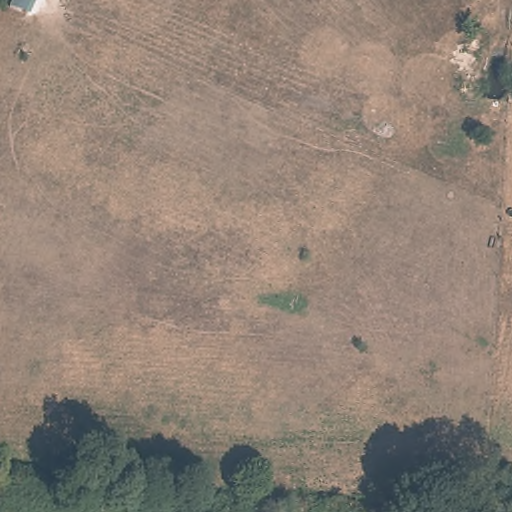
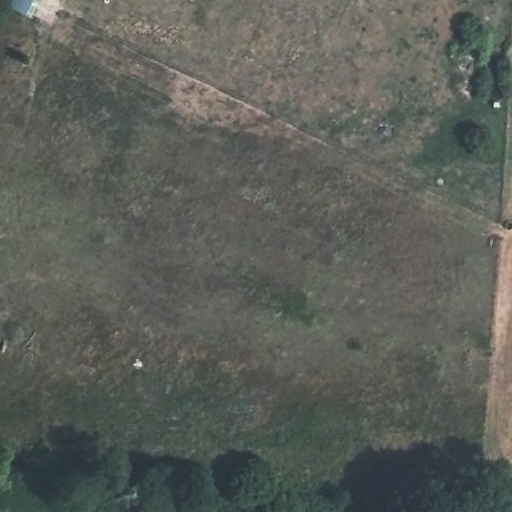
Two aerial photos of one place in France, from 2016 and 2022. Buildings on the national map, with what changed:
[]

